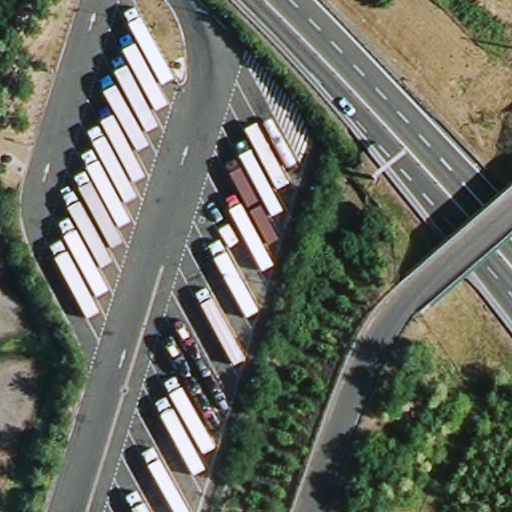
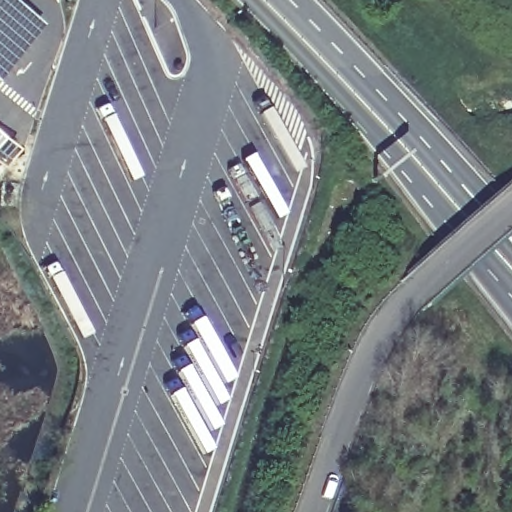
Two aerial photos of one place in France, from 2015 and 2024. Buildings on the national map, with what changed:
new [(45,25),(0,80),(0,0),(14,0),(45,25)]

